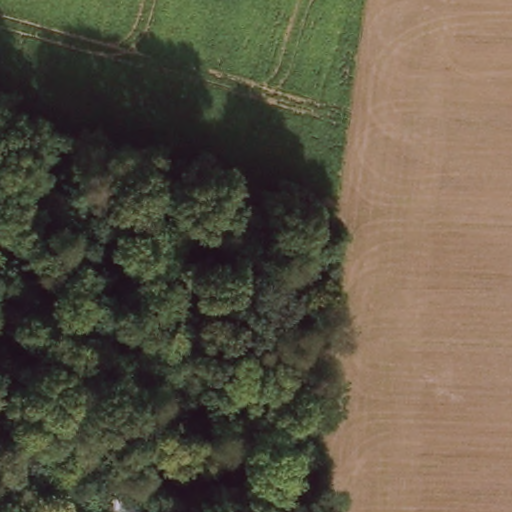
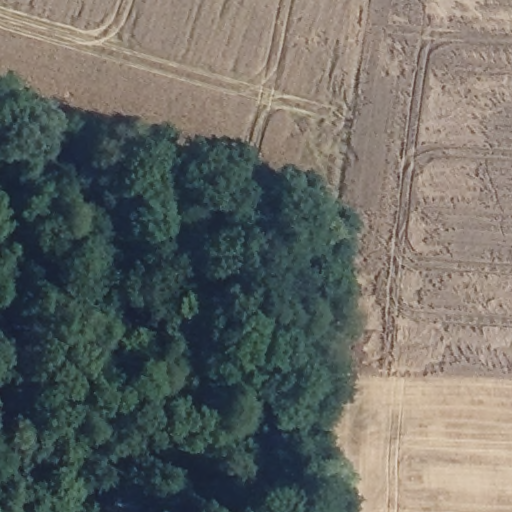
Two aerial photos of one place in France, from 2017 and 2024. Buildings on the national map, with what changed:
unchanged [(143,484),(142,511),(129,512),(123,512),(124,483),(143,484)]

